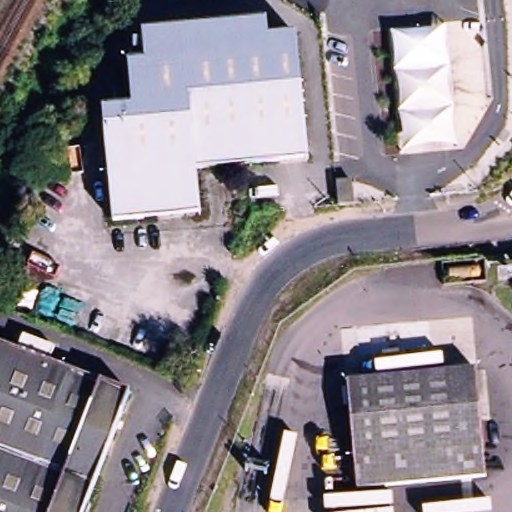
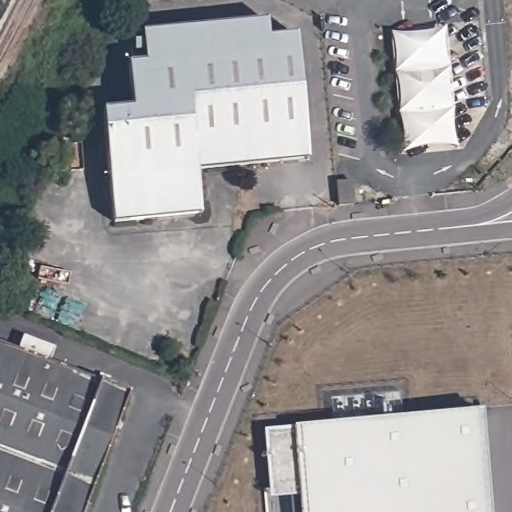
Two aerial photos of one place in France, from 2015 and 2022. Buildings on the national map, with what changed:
unchanged [(306,162),(197,175),(200,215),(112,223),(103,119),(133,116),(129,69),(142,67),(139,37),(272,24),(273,41),(295,38),(306,162)]
unchanged [(476,26),(481,75),(450,77),(457,144),(405,153),(394,38),(476,26)]
unchanged [(334,205),(332,181),(347,180),(350,204),(334,205)]
unchanged [(53,353),(48,367),(132,399),(89,512),(90,512),(0,512),(0,348),(17,354),(22,341),(53,353)]
demolished [(485,479),(355,493),(344,387),(474,373),(485,479)]
new [(489,512),(299,512),(298,495),(270,498),(264,428),(480,409),(489,512)]

